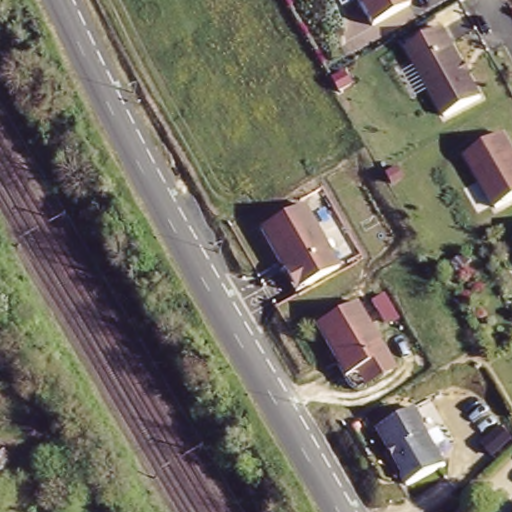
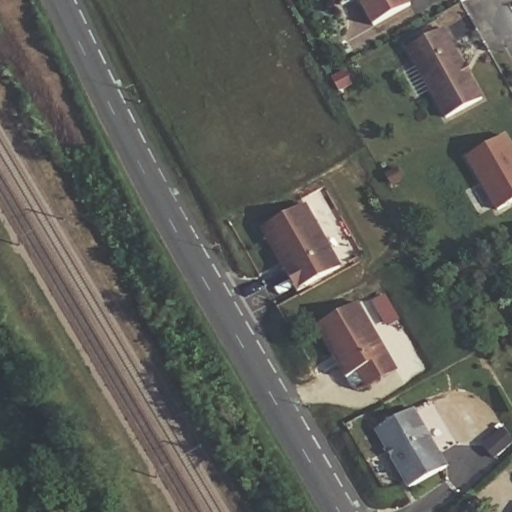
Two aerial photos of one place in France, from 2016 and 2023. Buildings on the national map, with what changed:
unchanged [(370,26),(356,0),(407,0),(409,3),(370,26)]
unchanged [(440,27),(477,97),(441,116),(404,46),(440,27)]
unchanged [(503,133),(512,149),(512,199),(495,208),(465,154),(503,133)]
unchanged [(305,203),(339,264),(292,290),(258,229),(305,203)]
unchanged [(364,387),(356,372),(345,378),(319,328),(360,306),(387,357),(395,373),(364,387)]
unchanged [(412,410),(445,471),(405,493),(372,432),(412,410)]

